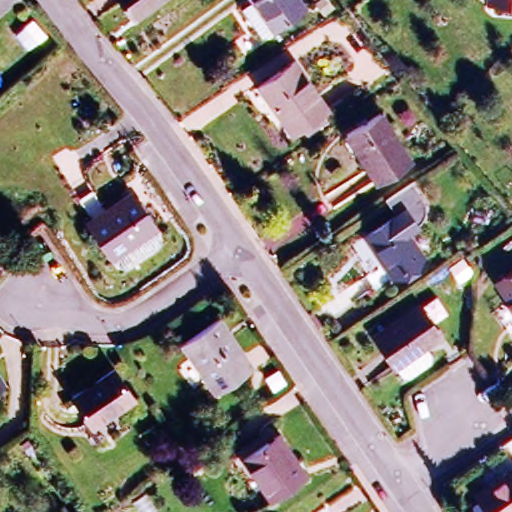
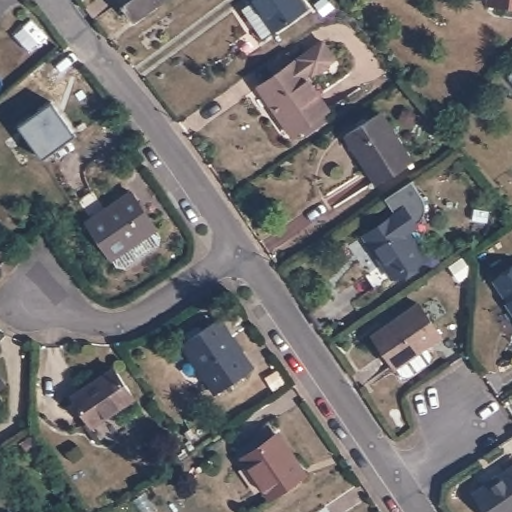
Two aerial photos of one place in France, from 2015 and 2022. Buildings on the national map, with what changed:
unchanged [(114,0),(168,0),(132,25),(114,0)]
unchanged [(260,39),(239,9),(250,1),(249,0),(298,0),(304,9),(260,39)]
unchanged [(327,0),(332,8),(323,15),(314,4),(319,0),(327,0)]
unchanged [(493,0),(512,0),(512,5),(493,4),(493,0)]
unchanged [(293,63),(326,109),(290,134),(257,87),(293,63)]
new [(54,106),(78,139),(45,163),(22,130),(54,106)]
unchanged [(378,114),(411,163),(376,184),(345,134),(378,114)]
unchanged [(386,201),(410,186),(412,189),(423,206),(423,207),(423,208),(424,208),(424,209),(425,209),(425,210),(425,211),(425,212),(425,213),(425,214),(425,215),(425,216),(425,217),(425,218),(425,219),(425,220),(425,221),(425,222),(425,223),(424,223),(424,224),(423,224),(423,225),(422,225),(422,226),(422,227),(421,228),(420,228),(416,231),(417,232),(406,239),(422,263),(391,283),(373,255),(364,240),(369,238),(397,219),(386,201)]
unchanged [(125,187),(155,230),(153,240),(120,262),(110,261),(80,218),(125,187)]
unchanged [(510,308),(495,287),(512,276),(512,316),(507,310),(510,308)]
unchanged [(417,305),(440,336),(425,347),(430,355),(429,362),(408,377),(402,375),(395,367),(395,368),(372,337),(417,305)]
unchanged [(215,394),(181,344),(218,319),(227,332),(242,356),(252,368),(215,394)]
unchanged [(112,370),(133,401),(92,428),(71,398),(112,370)]
unchanged [(277,431),(305,470),(270,494),(242,454),(277,431)]
unchanged [(485,477),(497,469),(501,476),(512,468),(512,512),(486,512),(474,494),(490,483),(485,477)]

